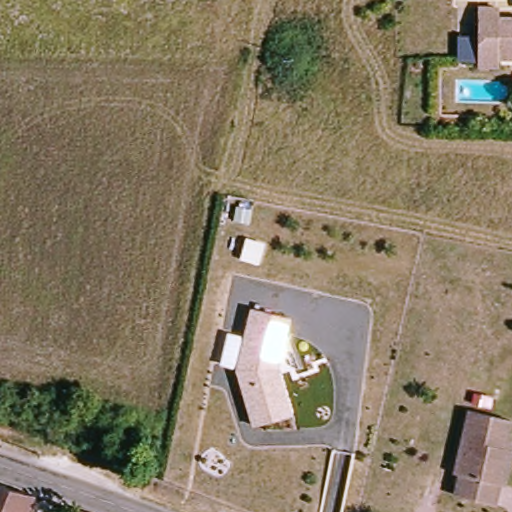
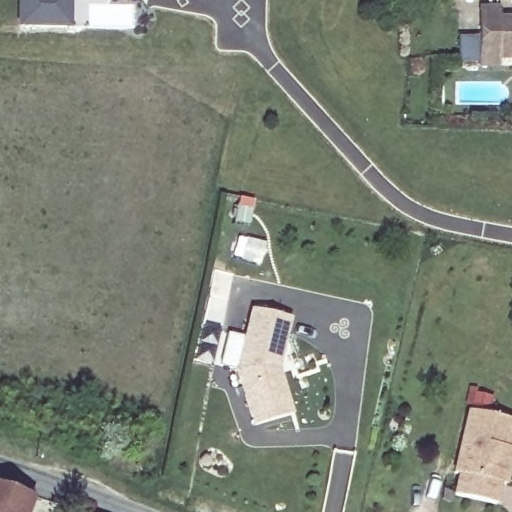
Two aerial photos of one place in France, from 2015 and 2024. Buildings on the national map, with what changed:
new [(69,29),(16,29),(16,0),(69,0),(69,29)]
unchanged [(502,59),(502,61),(502,67),(483,67),(483,61),(483,33),(483,10),(503,10),(502,20),(512,20),(512,59),(502,59)]
unchanged [(289,416),(253,427),(236,371),(251,311),(288,320),(275,370),(289,416)]
unchanged [(497,484),(492,505),(452,495),(457,475),(452,474),(467,411),(510,421),(505,442),(512,444),(510,451),(502,486),(497,484)]
unchanged [(29,512),(0,512),(0,484),(34,496),(29,512)]

